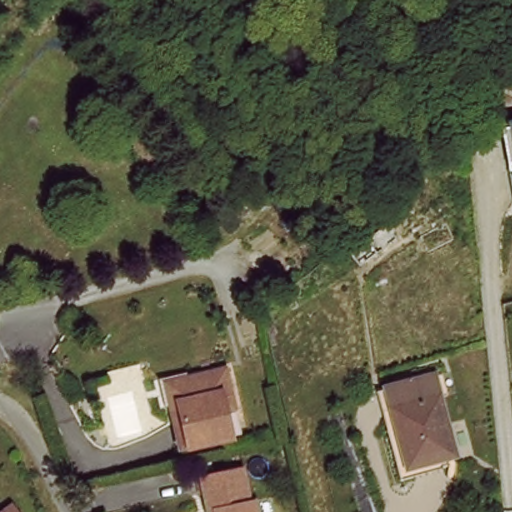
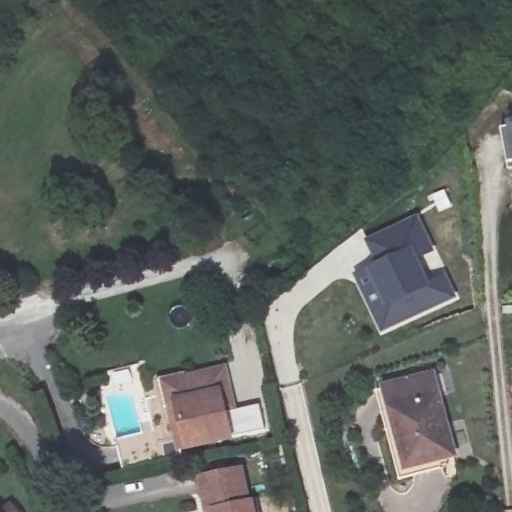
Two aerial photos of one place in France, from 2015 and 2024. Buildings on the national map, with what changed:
demolished [(477,135),(508,102),(512,97),(512,136),(496,152),(477,135)]
new [(508,122),(512,121),(512,171),(510,172),(501,130),(509,128),(508,122)]
new [(378,264),(367,242),(419,217),(437,252),(422,260),(431,280),(445,274),(456,297),(382,334),(355,276),(378,264)]
unchanged [(224,375),(230,397),(218,400),(227,439),(179,451),(168,408),(174,407),(169,388),(224,375)]
unchanged [(451,446),(402,458),(387,397),(435,386),(451,446)]
unchanged [(248,499),(251,512),(210,512),(208,507),(202,508),(194,475),(234,465),(242,500),(248,499)]
unchanged [(0,512),(0,509),(4,506),(8,512),(0,512)]

